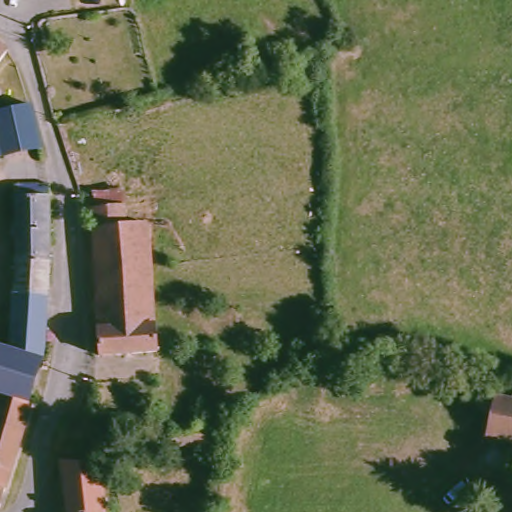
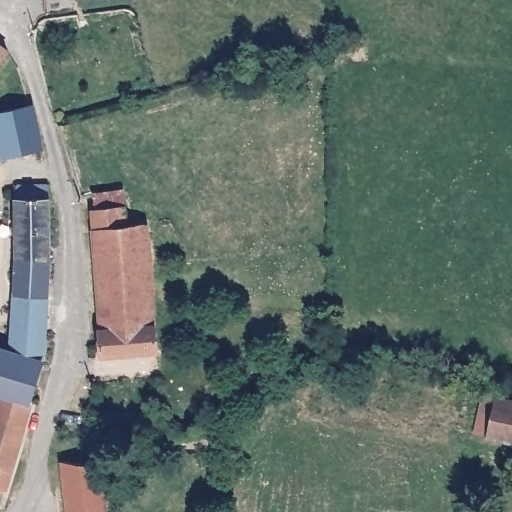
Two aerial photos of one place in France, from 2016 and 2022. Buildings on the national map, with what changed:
unchanged [(17,49),(0,72),(0,36),(17,49)]
unchanged [(4,129),(4,112),(42,104),(50,150),(0,158),(0,130),(4,129)]
unchanged [(15,341),(23,281),(22,177),(51,172),(55,198),(56,274),(53,342),(41,396),(2,388),(0,388),(0,339),(15,341)]
unchanged [(140,209),(140,228),(160,230),(163,351),(104,354),(105,293),(102,209),(140,209)]
unchanged [(0,415),(0,400),(2,388),(41,396),(36,422),(0,415)]
unchanged [(493,432),(494,408),(485,406),(487,391),(512,398),(512,437),(493,432)]
unchanged [(36,422),(17,505),(0,505),(0,415),(36,422)]
unchanged [(195,451),(183,453),(181,439),(159,440),(160,419),(192,418),(195,451)]
unchanged [(487,461),(499,462),(496,491),(486,491),(487,461)]
unchanged [(71,507),(70,467),(104,464),(106,502),(106,512),(71,512),(71,507)]

